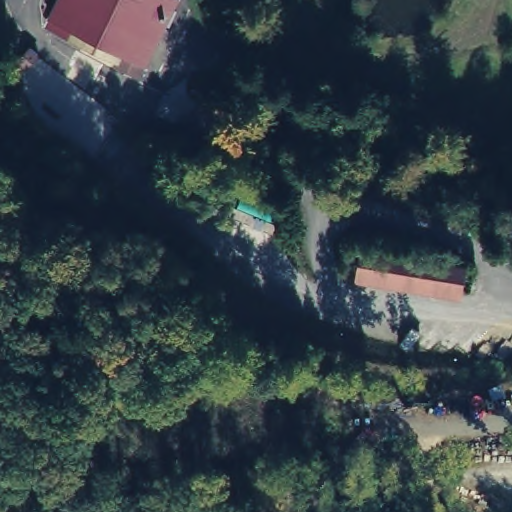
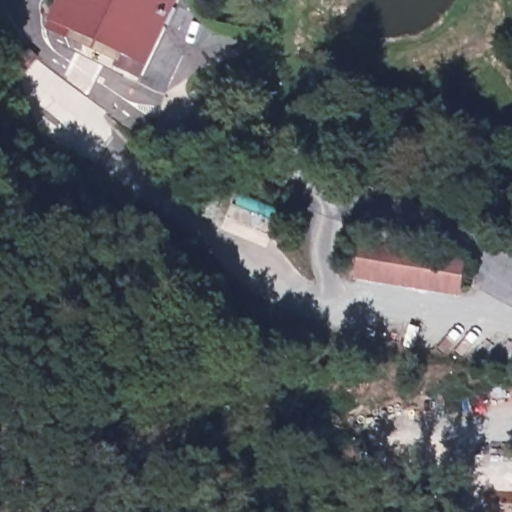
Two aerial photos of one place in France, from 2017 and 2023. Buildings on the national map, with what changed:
unchanged [(51,13),(57,0),(177,0),(149,65),(51,13)]
unchanged [(467,262),(462,297),(344,276),(351,240),(467,262)]

